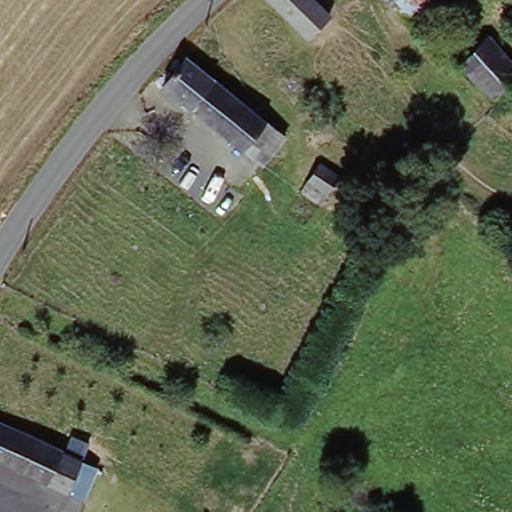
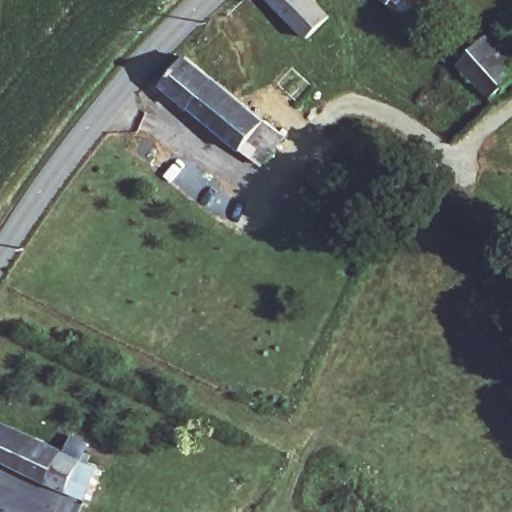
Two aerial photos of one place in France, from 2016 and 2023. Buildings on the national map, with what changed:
unchanged [(311,45),(265,0),(309,0),(332,23),(311,45)]
unchanged [(391,0),(403,0),(397,6),(391,0)]
unchanged [(403,0),(441,0),(444,3),(420,28),(397,6),(403,0)]
unchanged [(493,39),(512,60),(512,88),(495,102),(462,68),(493,39)]
unchanged [(190,62),(292,140),(266,172),(166,90),(190,62)]
unchanged [(317,165),(336,178),(317,208),(297,193),(317,165)]
unchanged [(0,423),(0,422),(1,422),(0,423)]
unchanged [(70,497),(70,498),(0,463),(0,425),(68,459),(76,443),(93,452),(86,467),(85,467),(101,476),(86,505),(70,497)]

